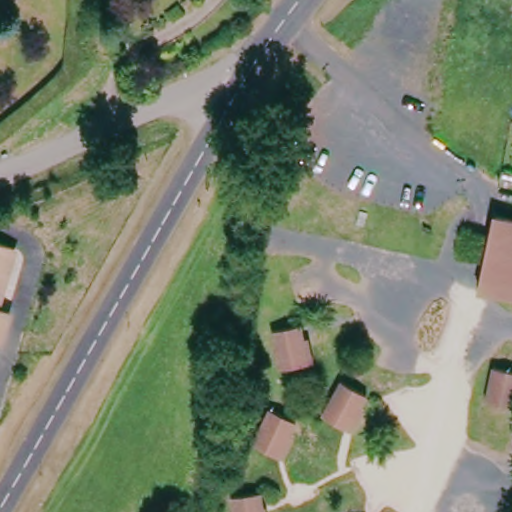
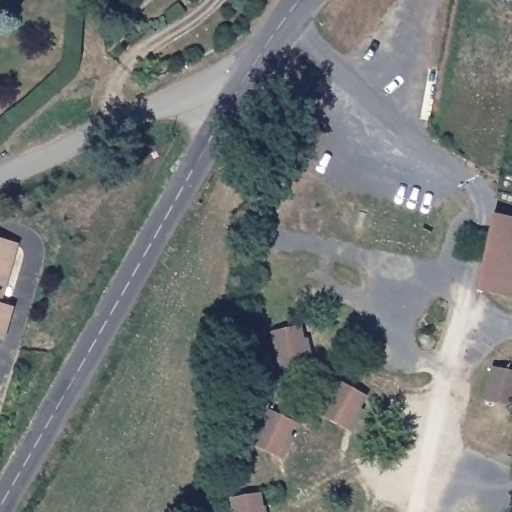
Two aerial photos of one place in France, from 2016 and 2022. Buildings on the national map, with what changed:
unchanged [(489,221),(512,227),(512,303),(479,297),(489,221)]
unchanged [(0,262),(0,242),(7,242),(0,262)]
unchanged [(279,371),(271,332),(300,327),(309,364),(279,371)]
unchanged [(512,373),(512,400),(510,405),(510,409),(480,404),(481,401),(486,369),(512,373)]
unchanged [(347,431),(320,417),(338,382),(364,398),(347,431)]
unchanged [(278,457),(252,445),(266,412),(294,425),(278,457)]
unchanged [(258,495),(261,512),(231,512),(230,499),(258,495)]

